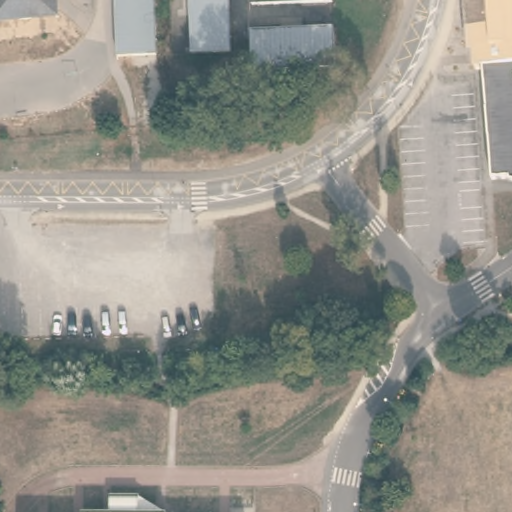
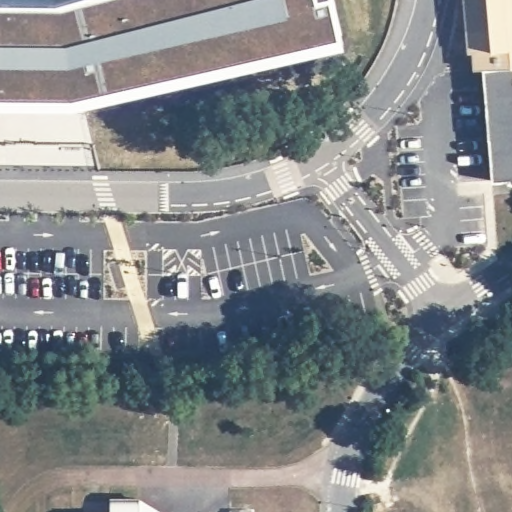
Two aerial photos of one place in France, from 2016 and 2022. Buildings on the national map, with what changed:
demolished [(0,14),(0,0),(54,0),(54,11),(44,11),(30,16),(22,17),(10,14),(0,14)]
new [(344,42),(74,106),(0,105),(0,0),(334,0),(344,42)]
demolished [(158,59),(117,60),(115,0),(155,0),(158,59)]
demolished [(190,0),(229,0),(231,53),(192,55),(190,0)]
demolished [(251,0),(333,0),(333,3),(251,7),(251,0)]
unchanged [(510,175),(493,177),(487,112),(483,64),(475,65),(473,46),(468,46),(466,0),(512,0),(512,178),(511,178),(510,175)]
demolished [(333,28),(334,67),(254,72),(251,33),(333,28)]
unchanged [(140,512),(110,512),(110,498),(140,499),(140,512)]

